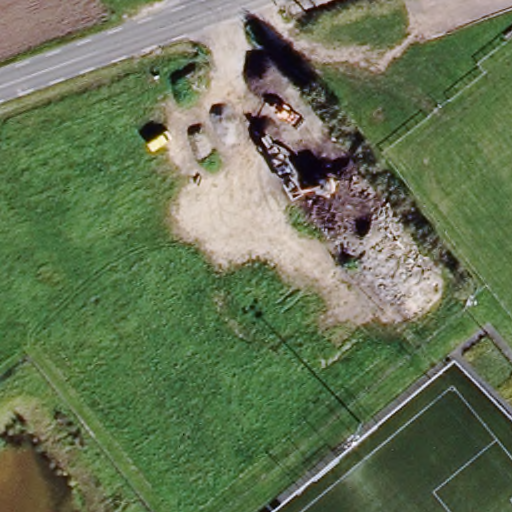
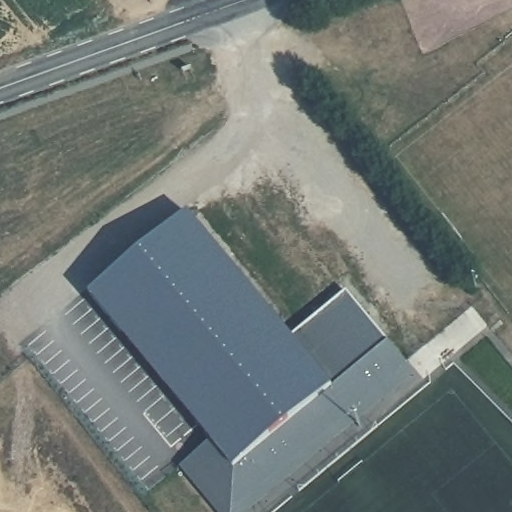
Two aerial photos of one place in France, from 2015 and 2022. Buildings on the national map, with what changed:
new [(234,471),(209,443),(83,294),(185,213),(287,332),(343,289),(389,343),(234,471)]
new [(250,512),(217,512),(181,469),(209,443),(234,471),(389,343),(416,375),(250,512)]

